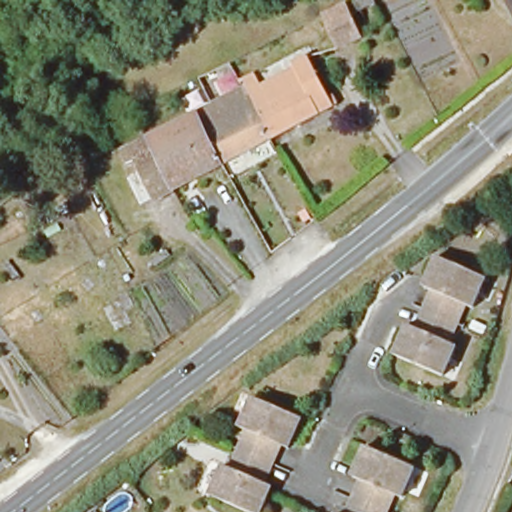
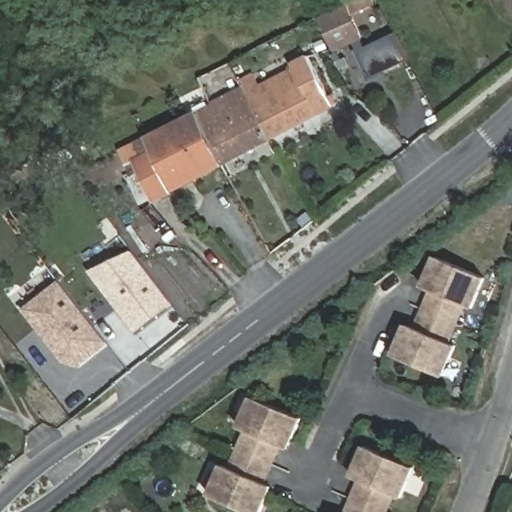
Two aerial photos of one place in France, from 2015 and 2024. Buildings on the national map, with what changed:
unchanged [(371,0),(375,9),(353,19),(364,41),(337,54),(322,20),(347,10),(371,0)]
unchanged [(332,105),(270,137),(260,120),(246,94),(295,69),(292,65),(308,57),(332,105)]
unchanged [(119,150),(148,137),(245,90),(246,94),(260,120),(270,137),(154,199),(135,160),(125,165),(119,150)]
new [(127,244),(172,302),(136,330),(91,271),(127,244)]
unchanged [(153,266),(149,261),(162,252),(165,257),(153,266)]
unchanged [(486,278),(473,308),(464,305),(456,324),(425,310),(432,291),(424,288),(437,257),(486,278)]
new [(60,281),(108,342),(79,365),(65,361),(24,310),(60,281)]
unchanged [(456,324),(448,342),(457,346),(444,376),(395,356),(408,325),(416,329),(425,310),(456,324)]
unchanged [(250,433),(241,430),(254,400),(302,420),(290,450),(281,447),(273,465),(241,452),(250,433)]
unchanged [(416,468),(403,498),(395,495),(387,512),(383,512),(355,500),(362,481),(355,478),(367,447),(416,468)]
unchanged [(273,465),(265,485),(274,488),(264,512),(245,512),(212,498),(225,467),(234,471),(241,452),(273,465)]
unchanged [(383,512),(349,512),(355,500),(383,512)]

